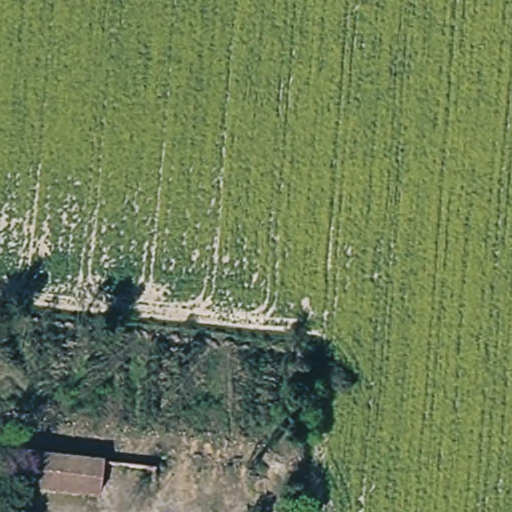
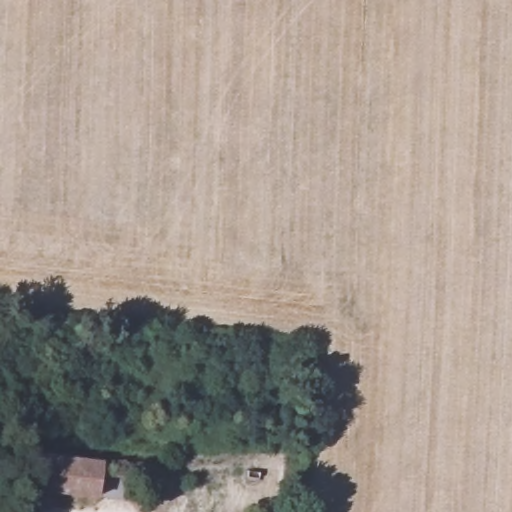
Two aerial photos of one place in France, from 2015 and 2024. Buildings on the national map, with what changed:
unchanged [(26,447),(96,454),(92,489),(22,482),(26,447)]

